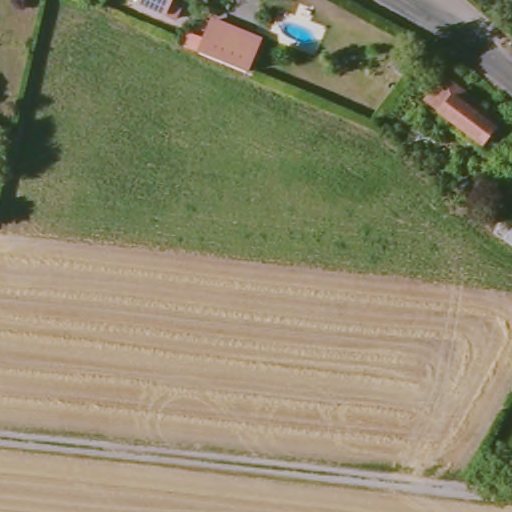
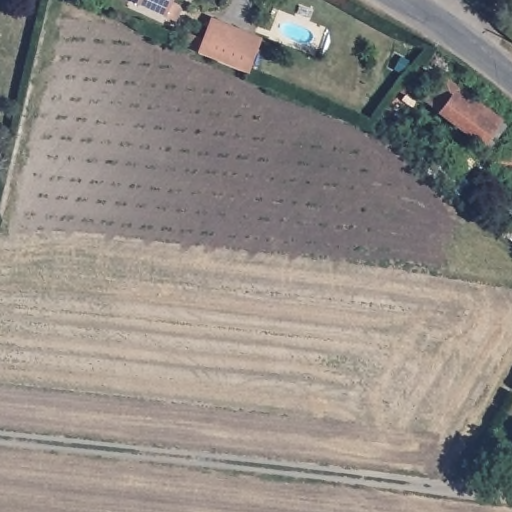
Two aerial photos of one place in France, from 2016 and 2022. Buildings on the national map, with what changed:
unchanged [(179,7),(174,17),(143,0),(170,0),(168,2),(179,7)]
unchanged [(204,51),(220,19),(240,28),(265,40),(251,73),(233,65),(204,51)]
unchanged [(455,78),(487,105),(480,116),(501,133),(488,151),(432,108),(455,78)]

